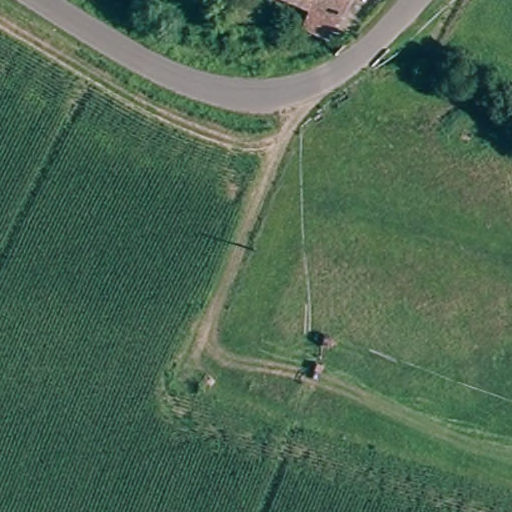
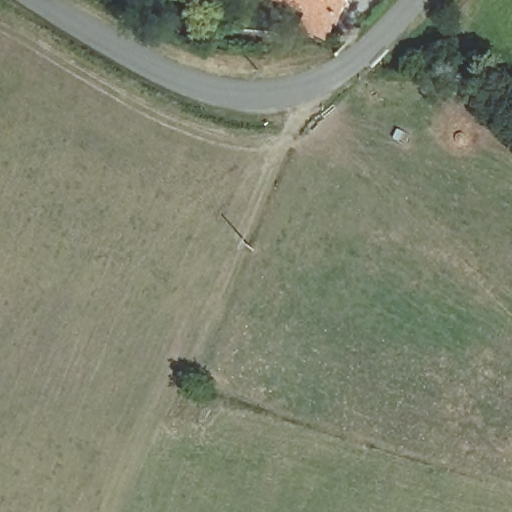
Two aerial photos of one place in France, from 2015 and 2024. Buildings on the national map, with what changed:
unchanged [(298,27),(305,17),(278,0),(345,0),(321,41),(298,27)]

